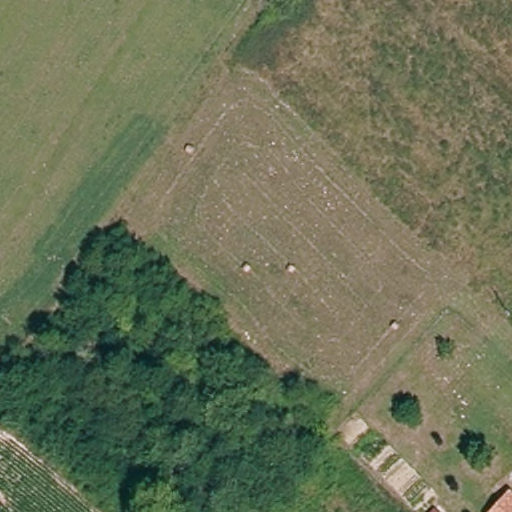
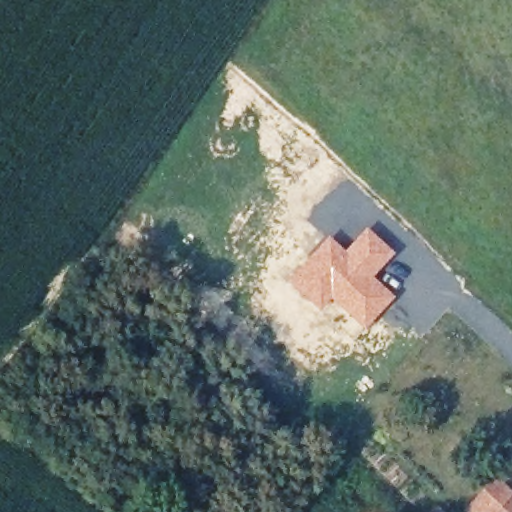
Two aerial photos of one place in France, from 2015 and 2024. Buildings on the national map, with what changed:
new [(327,236),(345,250),(366,227),(394,253),(373,277),(394,297),(364,331),(332,302),(321,313),(284,281),(327,236)]
unchanged [(509,490),(512,493),(512,512),(490,512),(509,490)]

